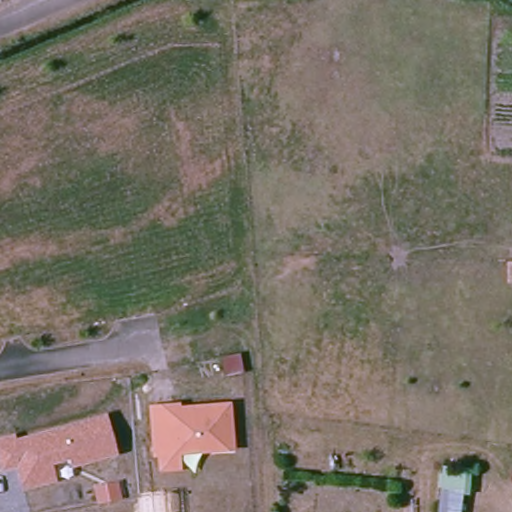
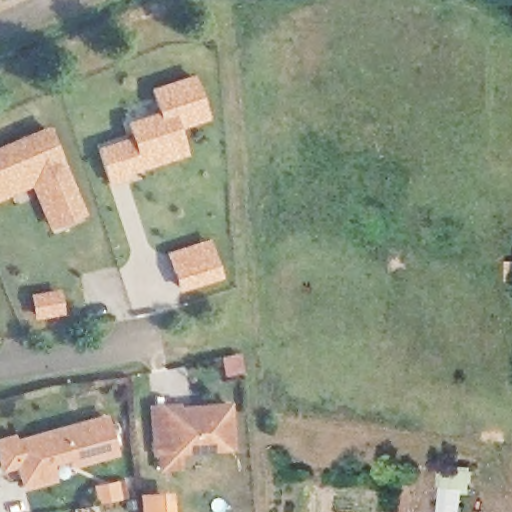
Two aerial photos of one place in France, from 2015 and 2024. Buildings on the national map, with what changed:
new [(209,117),(177,127),(186,154),(127,174),(130,179),(110,184),(97,147),(130,137),(125,122),(157,112),(150,88),(192,74),(209,117)]
new [(47,127),(82,211),(59,221),(35,167),(0,181),(0,146),(47,127)]
new [(35,167),(59,221),(47,226),(29,182),(0,194),(0,181),(35,167)]
new [(176,290),(171,272),(166,257),(209,244),(214,257),(220,276),(176,290)]
new [(58,296),(61,312),(36,317),(33,300),(58,296)]
unchanged [(233,401),(236,451),(180,456),(180,472),(158,472),(157,457),(152,457),(147,406),(180,401),(181,406),(233,401)]
unchanged [(70,460),(52,466),(58,483),(21,492),(15,467),(0,471),(0,469),(0,437),(13,433),(16,440),(106,413),(117,455),(72,468),(70,460)]
unchanged [(467,466),(460,512),(433,512),(440,463),(467,466)]
unchanged [(119,480),(123,500),(97,506),(93,486),(119,480)]
new [(172,491),(174,512),(142,512),(140,495),(172,491)]

